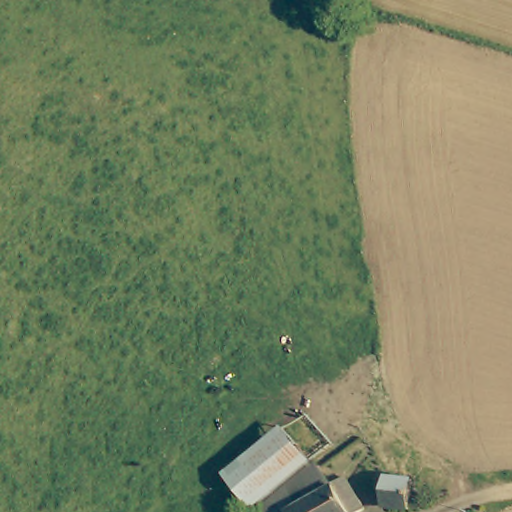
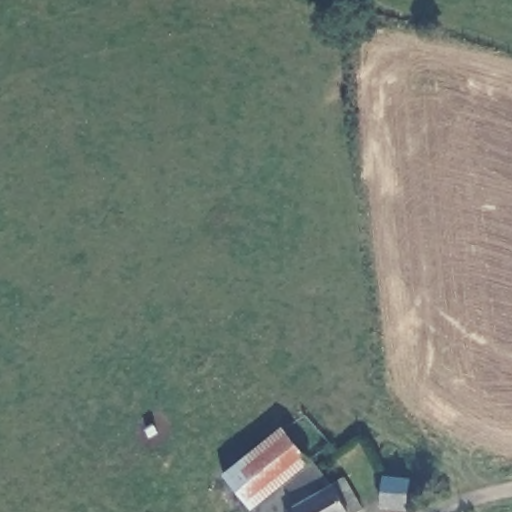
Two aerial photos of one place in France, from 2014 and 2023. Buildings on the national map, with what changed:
unchanged [(312,464),(255,508),(226,473),(283,427),(312,464)]
unchanged [(409,512),(385,512),(391,462),(415,465),(409,512)]
unchanged [(332,487),(348,478),(367,508),(360,512),(255,512),(313,464),(332,487)]

